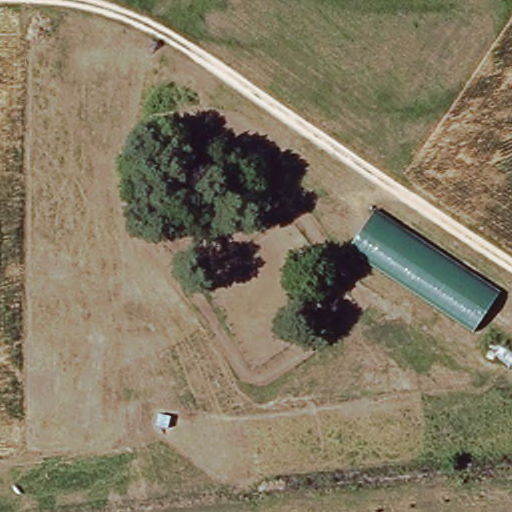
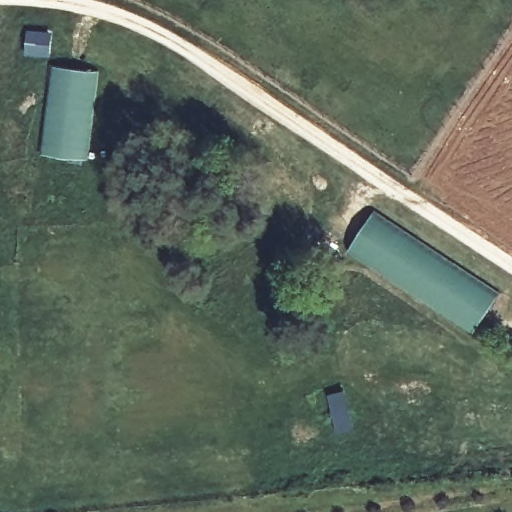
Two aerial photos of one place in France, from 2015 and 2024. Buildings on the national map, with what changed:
new [(99,70),(86,156),(40,151),(51,63),(99,70)]
unchanged [(499,293),(474,332),(349,251),(374,211),(499,293)]

